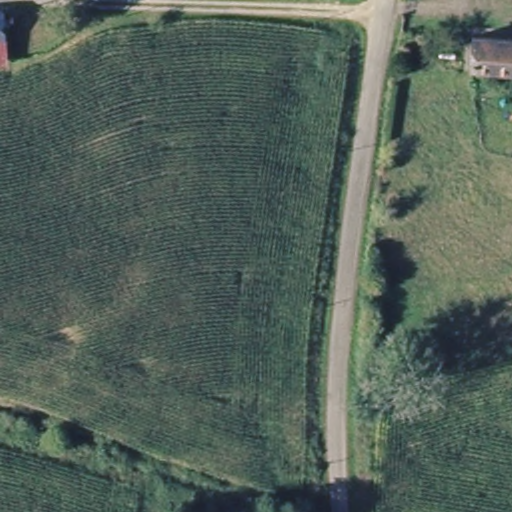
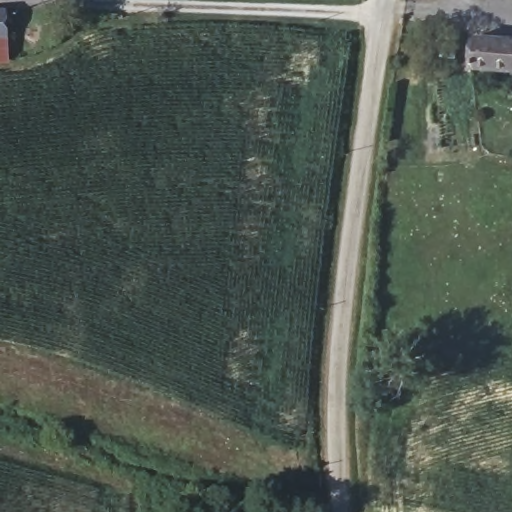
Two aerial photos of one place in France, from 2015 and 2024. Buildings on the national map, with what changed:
unchanged [(0,39),(0,12),(2,39),(0,39)]
unchanged [(470,37),(512,40),(512,76),(468,72),(470,37)]

